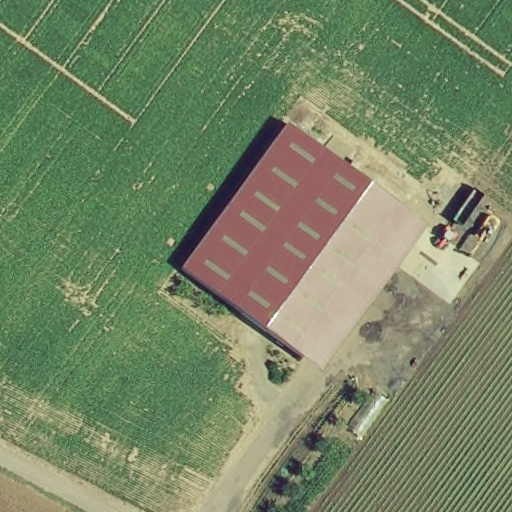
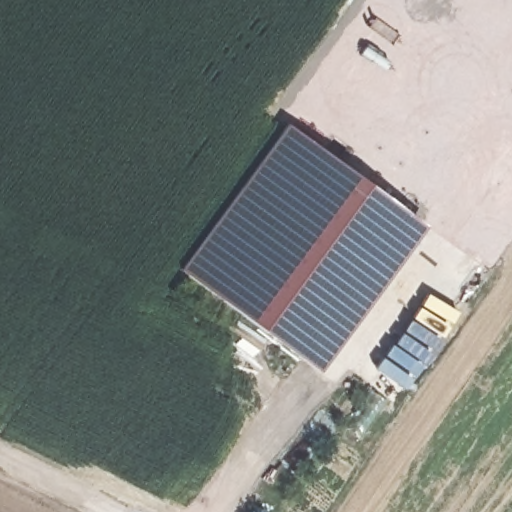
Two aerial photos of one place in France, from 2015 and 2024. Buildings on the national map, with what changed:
unchanged [(297,132),(418,221),(312,367),(190,278),(297,132)]

